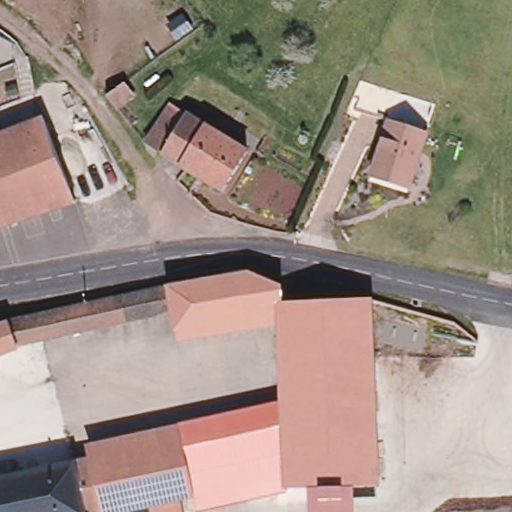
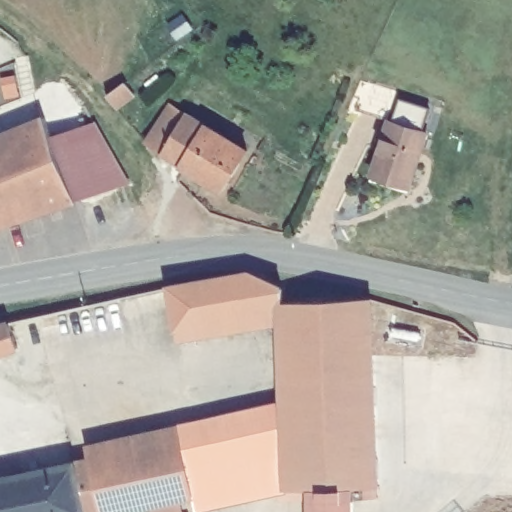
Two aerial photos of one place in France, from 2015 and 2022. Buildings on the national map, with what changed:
unchanged [(425,130),(384,117),(347,106),(356,80),(435,103),(425,130)]
unchanged [(125,82),(134,94),(116,107),(106,96),(125,82)]
unchanged [(181,166),(162,154),(147,144),(172,105),(186,114),(205,125),(181,166)]
unchanged [(366,177),(369,166),(384,117),(425,130),(410,178),(407,189),(366,177)]
new [(132,184),(74,203),(49,136),(96,122),(132,184)]
unchanged [(0,228),(0,139),(44,123),(74,203),(0,228)]
unchanged [(205,125),(247,151),(222,192),(181,166),(205,125)]
unchanged [(182,330),(177,311),(174,289),(253,275),(287,290),(287,304),(284,313),(182,330)]
unchanged [(123,300),(174,289),(177,311),(129,322),(123,300)]
unchanged [(129,322),(22,345),(23,349),(0,357),(0,328),(12,324),(123,300),(129,322)]
unchanged [(289,400),(284,313),(287,304),(374,302),(381,486),(358,487),(332,488),(314,488),(292,489),(291,476),(289,400)]
unchanged [(186,440),(183,425),(183,423),(289,400),(291,476),(197,497),(186,440)]
unchanged [(76,444),(178,424),(183,423),(183,425),(186,440),(197,497),(182,500),(156,506),(127,512),(0,512),(0,481),(81,463),(76,444)]
unchanged [(358,487),(359,512),(315,512),(314,488),(332,488),(358,487)]

